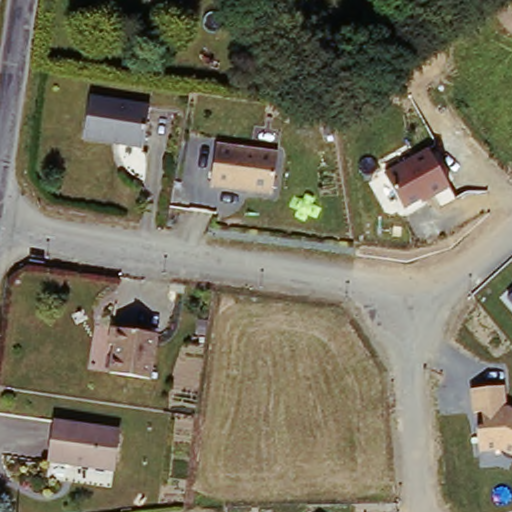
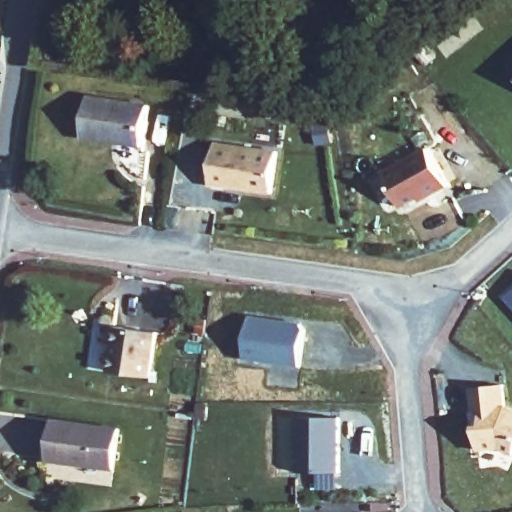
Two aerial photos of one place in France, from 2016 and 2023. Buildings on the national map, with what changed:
new [(512,72),(503,62),(512,54),(512,72)]
unchanged [(156,111),(149,152),(90,141),(97,100),(156,111)]
unchanged [(215,143),(275,150),(270,195),(211,186),(215,143)]
unchanged [(429,149),(455,190),(433,208),(423,199),(405,211),(386,171),(429,149)]
unchanged [(512,293),(512,306),(505,299),(512,293)]
new [(249,316),(299,324),(303,330),(298,366),(242,358),(249,316)]
unchanged [(162,338),(156,381),(116,375),(120,350),(113,347),(115,329),(162,338)]
unchanged [(512,408),(512,456),(498,449),(478,454),(477,424),(482,424),(480,412),(470,413),(468,389),(505,386),(506,406),(512,408)]
new [(296,417),(338,417),(337,472),(295,472),(296,417)]
unchanged [(59,423),(124,433),(116,472),(54,463),(59,423)]

